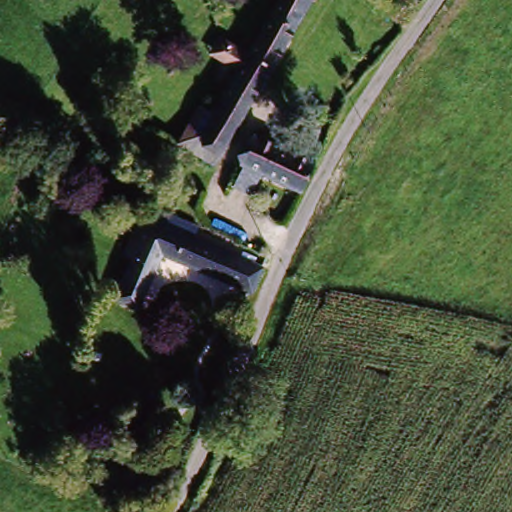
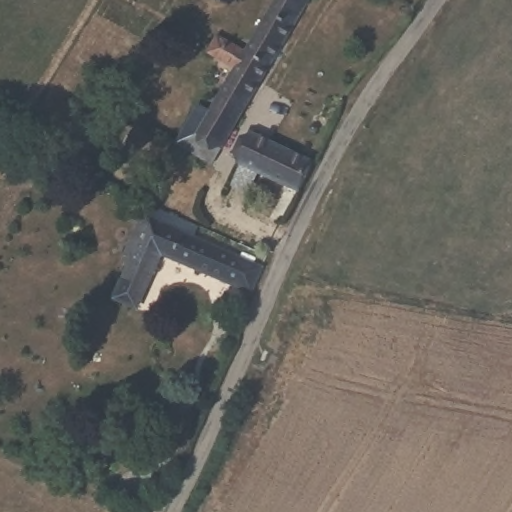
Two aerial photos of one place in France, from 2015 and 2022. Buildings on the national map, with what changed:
unchanged [(201,108),(208,111),(230,71),(207,59),(212,51),(204,47),(208,39),(215,42),(239,53),(270,0),(304,0),(220,152),(213,167),(181,148),(189,135),(201,108)]
unchanged [(297,192),(223,157),(233,134),(309,169),(297,192)]
unchanged [(223,284),(214,280),(157,255),(137,301),(118,293),(133,256),(137,247),(128,244),(140,219),(263,272),(252,297),(223,284)]

